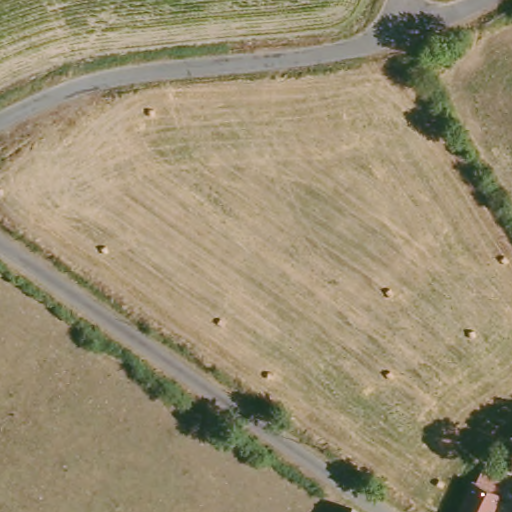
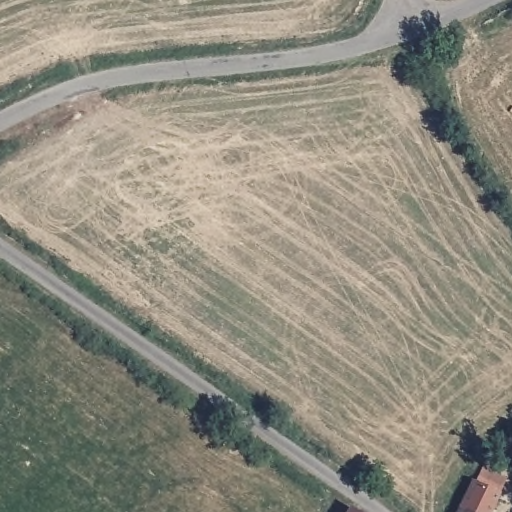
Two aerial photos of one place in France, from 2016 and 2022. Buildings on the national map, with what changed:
unchanged [(466,510),(476,494),(495,504),(491,512),(465,512),(466,510)]
unchanged [(356,506),(364,512),(352,512),(356,506)]

